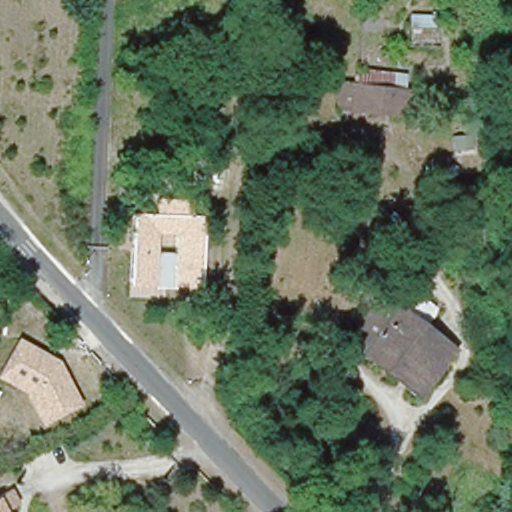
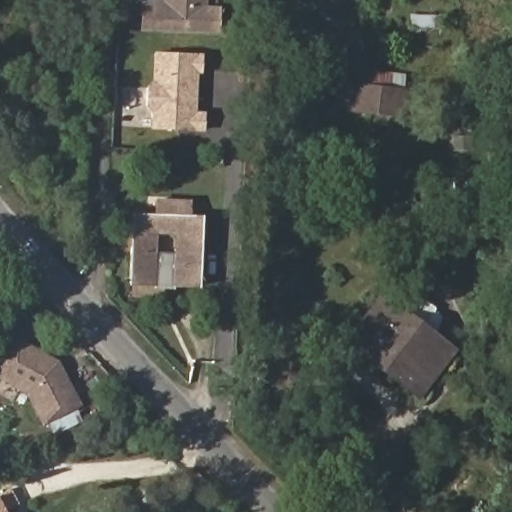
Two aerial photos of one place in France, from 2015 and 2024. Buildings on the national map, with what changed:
new [(220,5),(220,33),(141,29),(141,0),(207,0),(207,4),(220,5)]
new [(202,55),(202,74),(197,73),(196,112),(206,113),(205,132),(151,130),(152,110),(147,110),(148,82),(154,82),(156,53),(202,55)]
unchanged [(344,74),(355,76),(357,60),(411,71),(401,90),(417,91),(411,125),(342,106),(344,74)]
unchanged [(202,291),(151,290),(151,285),(130,285),(133,212),(152,212),(152,199),(190,201),(190,215),(204,216),(202,291)]
unchanged [(403,309),(372,348),(352,329),(387,287),(407,304),(403,309)]
unchanged [(407,304),(461,345),(423,390),(372,348),(407,304)]
unchanged [(42,425),(29,396),(0,378),(0,371),(20,337),(61,360),(84,405),(42,425)]
unchanged [(413,403),(362,360),(372,348),(423,390),(413,403)]
unchanged [(2,483),(12,498),(0,504),(0,484),(2,483)]
unchanged [(1,512),(0,512),(0,511),(1,512)]

